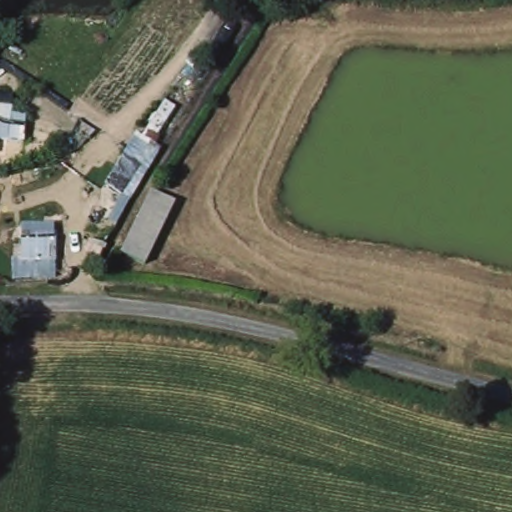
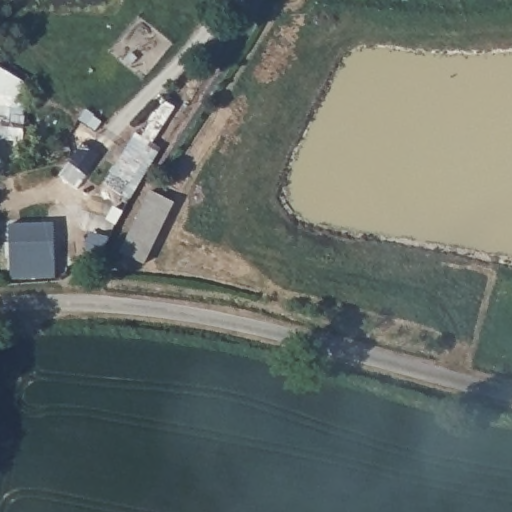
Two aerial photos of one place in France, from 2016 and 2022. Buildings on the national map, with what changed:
unchanged [(118,249),(148,188),(175,202),(144,268),(118,249)]
unchanged [(59,249),(60,268),(31,271),(30,250),(59,249)]

